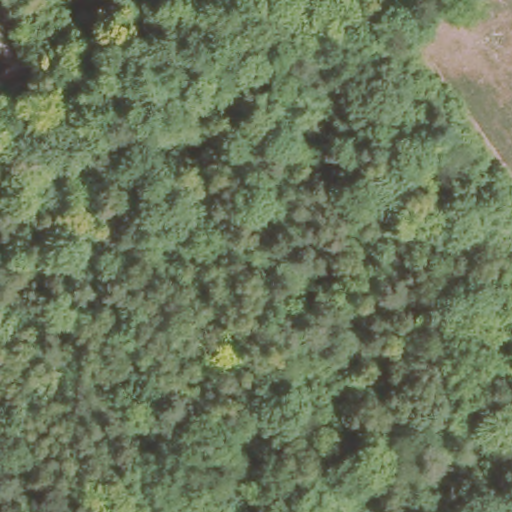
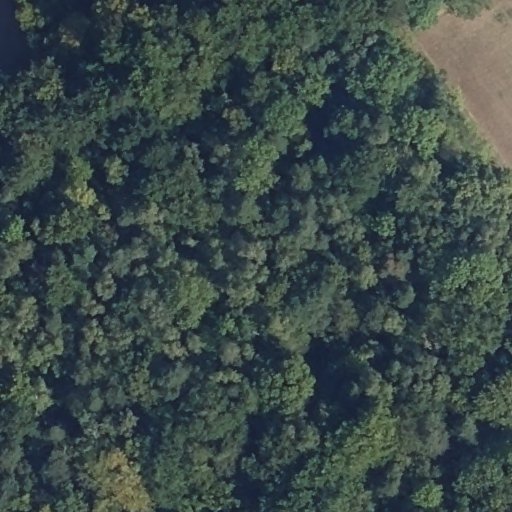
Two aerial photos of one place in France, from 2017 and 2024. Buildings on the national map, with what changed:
unchanged [(316,141),(292,152),(285,138),(309,127),(316,141)]

